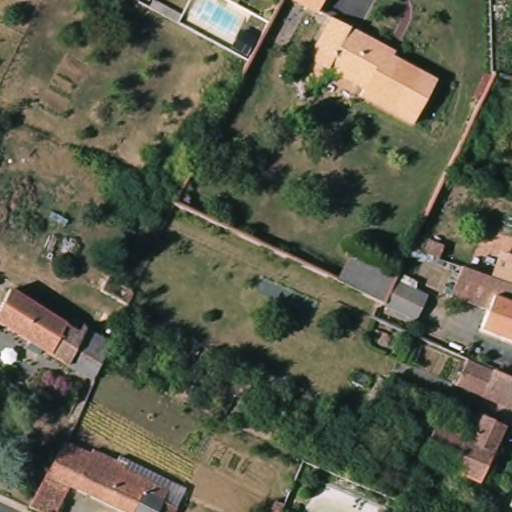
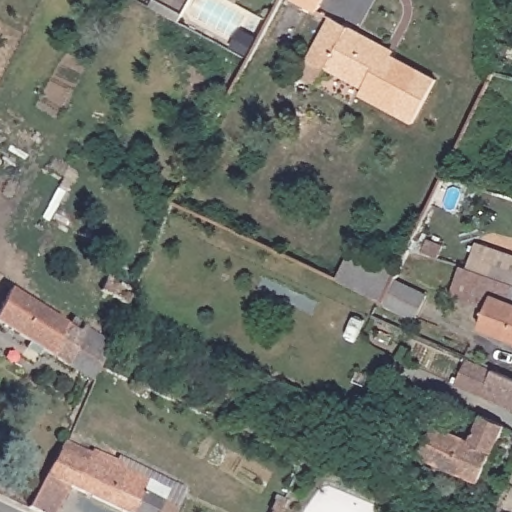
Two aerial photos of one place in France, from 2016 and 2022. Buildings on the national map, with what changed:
unchanged [(295,1),(293,0),(329,0),(322,15),(295,1)]
unchanged [(301,80),(311,62),(334,21),(389,51),(387,55),(438,84),(415,126),(361,97),(364,91),(327,70),(317,88),(301,80)]
unchanged [(426,224),(428,220),(452,230),(443,249),(410,236),(418,220),(426,224)]
unchanged [(419,324),(387,309),(371,301),(339,286),(353,257),(401,280),(398,286),(429,301),(419,324)]
unchanged [(482,332),(490,312),(454,297),(467,267),(512,285),(512,344),(482,332)]
unchanged [(108,268),(132,280),(125,295),(100,282),(108,268)]
unchanged [(18,295),(80,328),(84,320),(91,325),(87,333),(114,348),(106,362),(98,380),(1,325),(18,295)]
unchanged [(478,400),(454,389),(467,362),(490,374),(512,384),(512,416),(478,400)]
unchanged [(400,451),(413,422),(469,446),(480,422),(499,430),(503,432),(478,488),(400,451)]
unchanged [(91,459),(94,455),(123,470),(121,473),(186,505),(183,512),(110,512),(69,493),(60,512),(28,512),(63,446),(91,459)]

